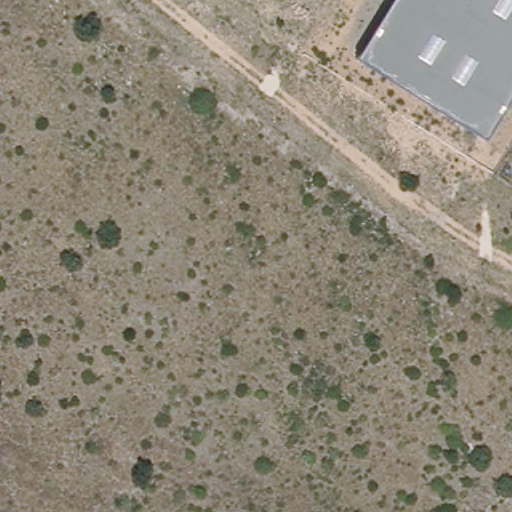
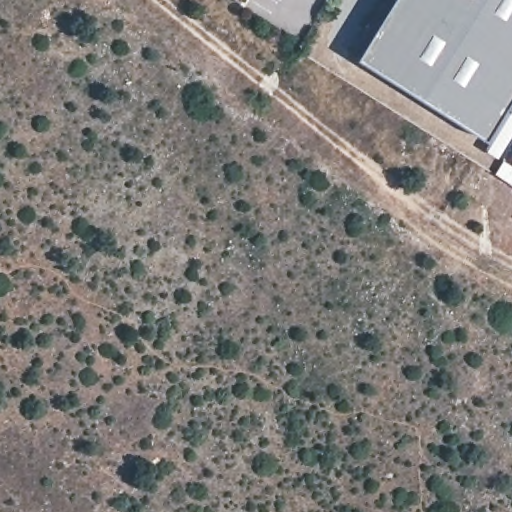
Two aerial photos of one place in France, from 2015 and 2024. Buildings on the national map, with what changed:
unchanged [(356,55),(391,0),(512,0),(512,91),(484,135),(356,55)]

